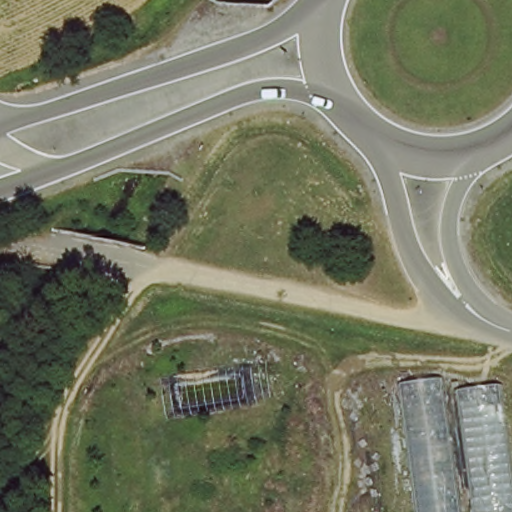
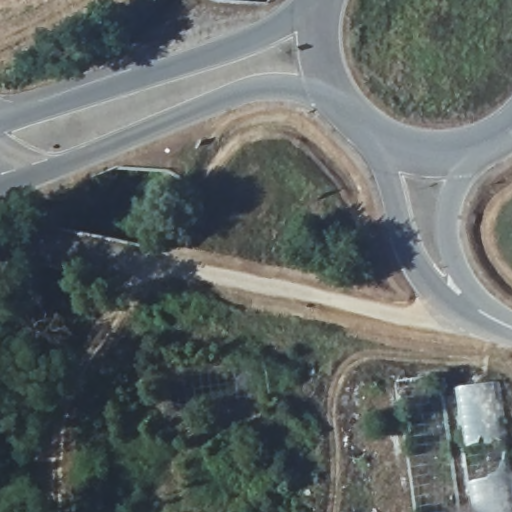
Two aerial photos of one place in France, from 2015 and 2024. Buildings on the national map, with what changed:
unchanged [(446,395),(494,384),(512,505),(512,512),(411,512),(393,388),(443,376),(446,395)]

